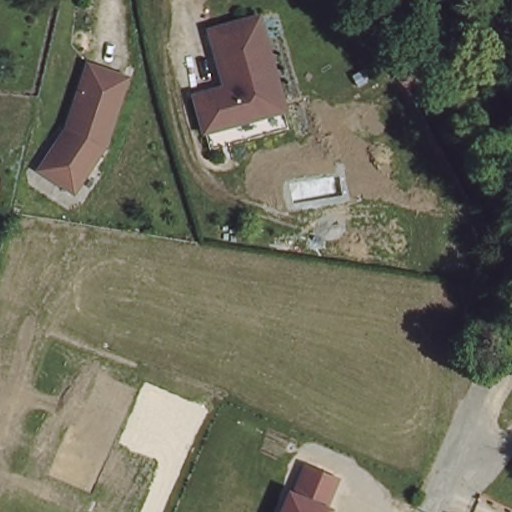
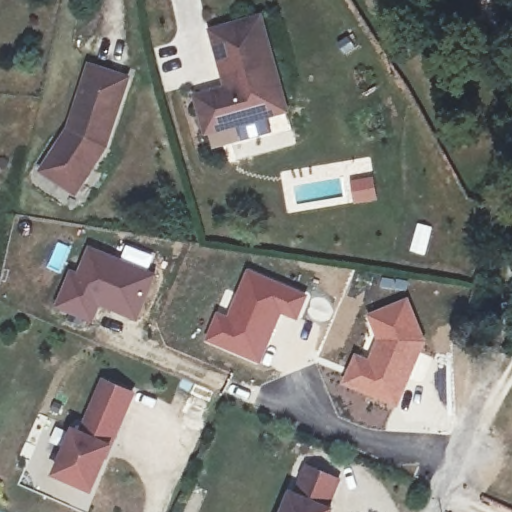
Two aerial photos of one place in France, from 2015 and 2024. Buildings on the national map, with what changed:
unchanged [(261,14),(286,107),(206,128),(198,93),(228,85),(213,27),(261,14)]
unchanged [(63,137),(71,125),(93,60),(132,73),(105,147),(98,148),(92,158),(96,159),(78,187),(53,171),(44,165),(63,137)]
new [(417,222),(434,226),(426,255),(409,250),(417,222)]
new [(68,268),(78,270),(88,245),(121,257),(126,244),(156,254),(150,269),(158,273),(138,321),(100,307),(93,323),(53,308),(68,268)]
new [(216,310),(226,314),(246,267),(309,293),(298,321),(283,314),(263,364),(203,341),(216,310)]
new [(354,352),(368,357),(375,336),(366,314),(409,296),(429,340),(399,409),(340,384),(354,352)]
new [(124,396),(102,445),(97,443),(90,458),(95,460),(82,492),(46,475),(65,432),(73,436),(96,383),(124,396)]
unchanged [(329,509),(333,510),(332,512),(282,512),(291,490),(297,492),(306,466),(341,479),(329,509)]

